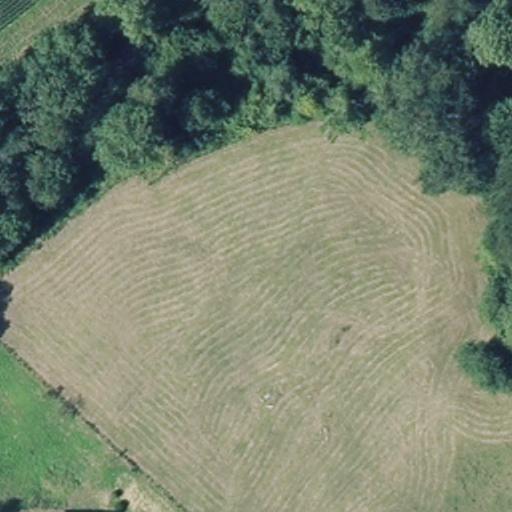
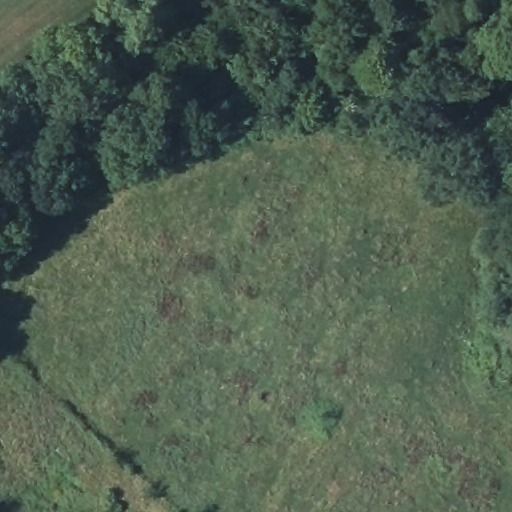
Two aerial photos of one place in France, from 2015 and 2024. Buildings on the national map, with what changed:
[]

